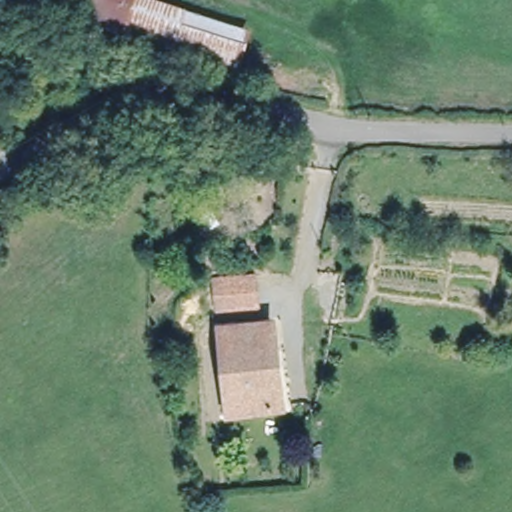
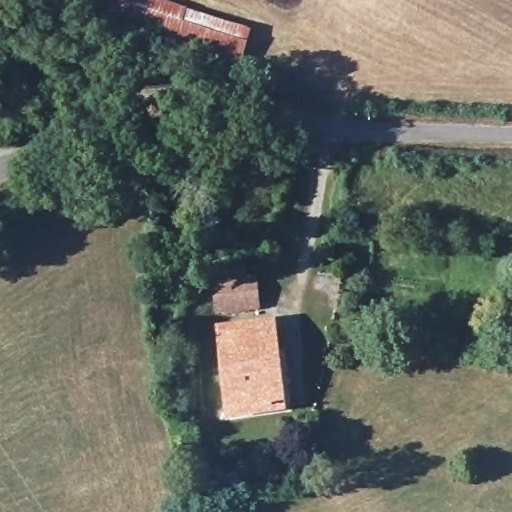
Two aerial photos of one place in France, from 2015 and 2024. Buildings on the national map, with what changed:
unchanged [(101,23),(111,0),(147,0),(134,35),(101,23)]
unchanged [(156,0),(250,36),(236,73),(134,35),(147,0),(156,0)]
unchanged [(215,312),(211,284),(269,276),(272,302),(267,306),(215,312)]
unchanged [(339,279),(340,297),(316,298),(316,280),(339,279)]
unchanged [(277,324),(287,409),(231,415),(221,330),(277,324)]

